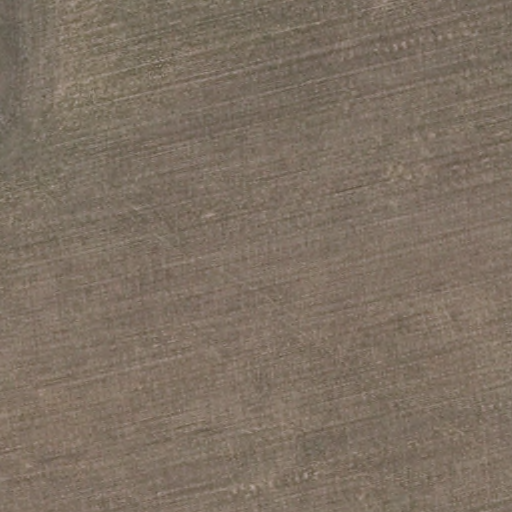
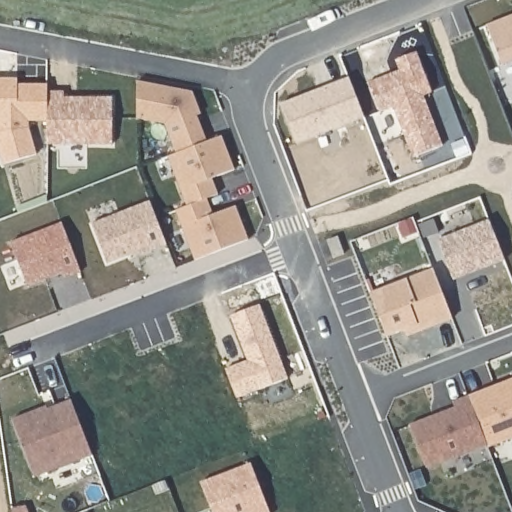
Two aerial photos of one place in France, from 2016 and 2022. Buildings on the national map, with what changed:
new [(512,16),(512,62),(502,66),(486,26),(512,16)]
new [(442,146),(411,157),(391,107),(378,112),(366,83),(398,71),(394,61),(416,52),(432,92),(423,96),(442,146)]
new [(349,79),(364,118),(296,144),(280,105),(349,79)]
new [(17,85),(47,85),(47,122),(29,122),(29,128),(36,155),(3,165),(0,154),(0,80),(17,80),(17,85)]
new [(136,82),(192,92),(197,106),(193,107),(206,142),(221,137),(234,170),(211,179),(218,195),(206,199),(212,215),(235,207),(248,240),(194,261),(176,211),(187,207),(169,157),(175,154),(164,124),(136,119),(136,82)]
new [(91,224),(149,202),(166,246),(135,257),(134,254),(106,263),(91,224)]
new [(489,221),(504,260),(453,280),(438,241),(489,221)]
new [(62,222),(81,272),(64,278),(63,273),(28,287),(11,242),(62,222)]
new [(404,330),(386,337),(369,294),(433,270),(452,319),(419,332),(406,337),(404,330)]
new [(247,362),(229,317),(259,306),(288,380),(236,399),(225,370),(247,362)]
new [(512,379),(512,438),(488,447),(487,445),(468,396),(512,379)]
new [(454,408),(453,402),(468,396),(487,445),(426,468),(409,425),(454,408)]
new [(45,407),(46,411),(71,401),(93,458),(34,481),(11,420),(45,407)]
new [(250,464),(269,512),(210,512),(199,483),(250,464)]
new [(28,512),(12,512),(12,510),(24,505),(28,512)]

